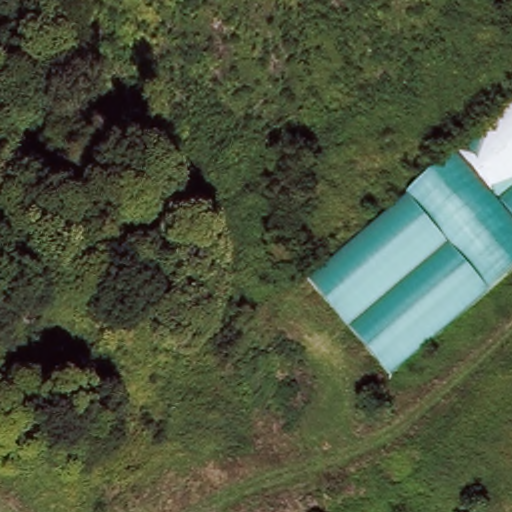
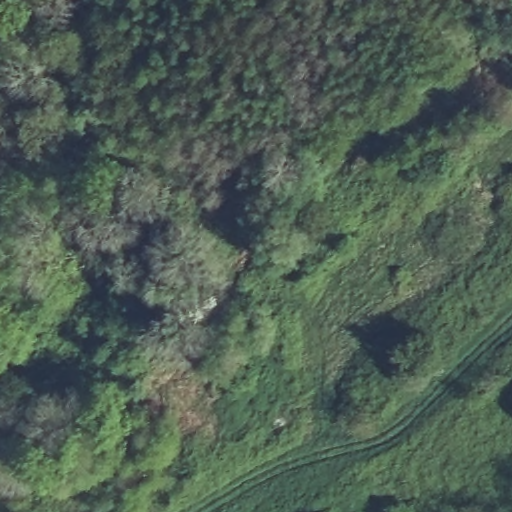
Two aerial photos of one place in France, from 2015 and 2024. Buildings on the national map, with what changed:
demolished [(309,281),(512,105),(512,275),(393,378),(309,281)]

